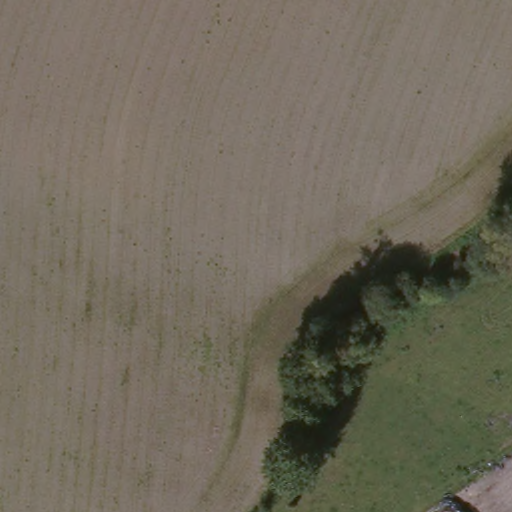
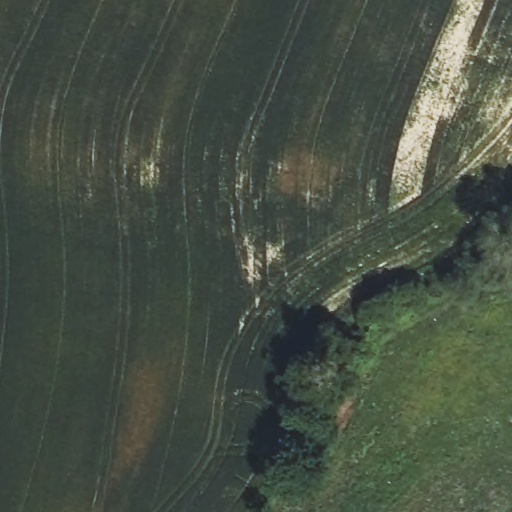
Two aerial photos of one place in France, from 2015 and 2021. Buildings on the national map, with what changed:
[]

